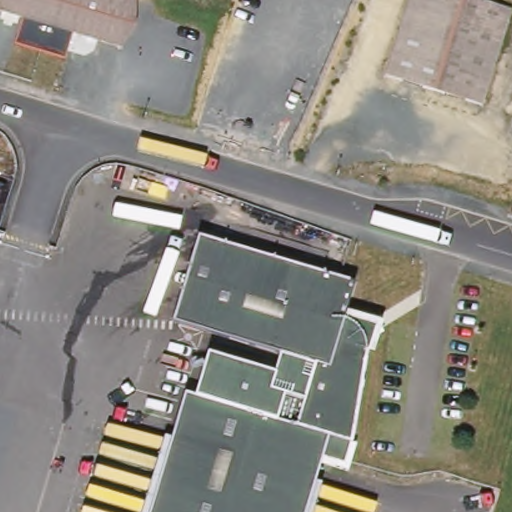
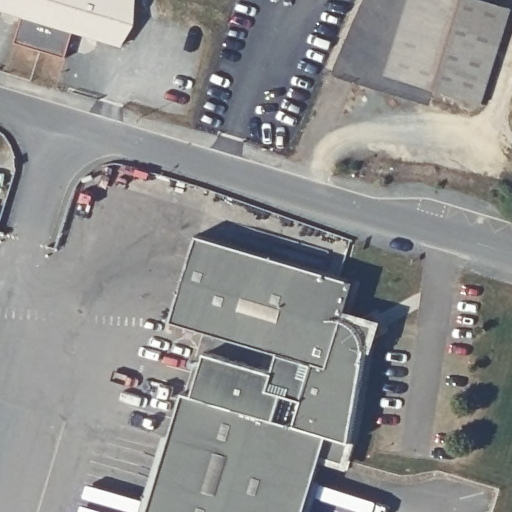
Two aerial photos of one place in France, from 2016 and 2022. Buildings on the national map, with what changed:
unchanged [(124,48),(73,34),(67,56),(17,40),(21,17),(0,11),(0,0),(138,0),(140,25),(124,48)]
unchanged [(379,77),(404,0),(466,0),(504,12),(474,108),(379,77)]
unchanged [(345,313),(358,321),(359,322),(376,327),(370,352),(367,351),(353,438),(350,441),(344,463),(322,460),(319,467),(306,512),(150,512),(186,391),(197,393),(209,351),(277,371),(272,387),(306,397),(316,361),(173,320),(199,232),(341,272),(355,277),(345,313)]

